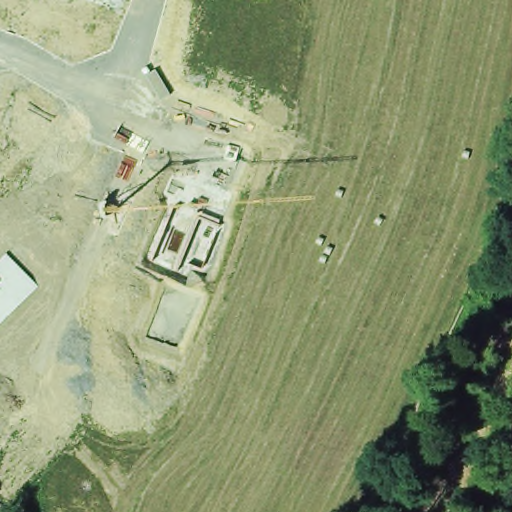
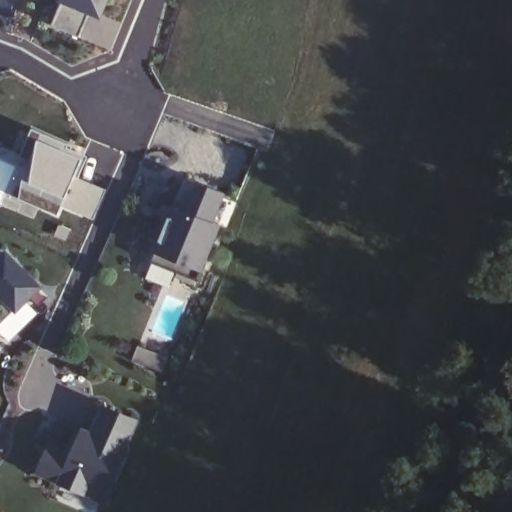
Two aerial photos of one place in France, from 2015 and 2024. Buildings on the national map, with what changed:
new [(99,13),(67,0),(104,0),(99,13)]
new [(30,130),(67,145),(65,150),(85,158),(76,180),(104,191),(92,218),(60,205),(57,214),(40,207),(34,218),(0,204),(0,147),(19,156),(30,130)]
new [(178,272),(151,261),(160,240),(155,238),(155,237),(160,239),(174,206),(177,207),(189,178),(225,193),(213,222),(220,225),(202,270),(201,269),(197,280),(178,272)]
unchanged [(39,287),(0,325),(0,260),(7,253),(39,287)]
new [(163,373),(131,360),(137,345),(168,357),(163,373)]
new [(125,447),(128,448),(103,504),(84,495),(56,483),(33,473),(47,440),(70,448),(81,426),(89,429),(100,404),(138,419),(125,447)]

